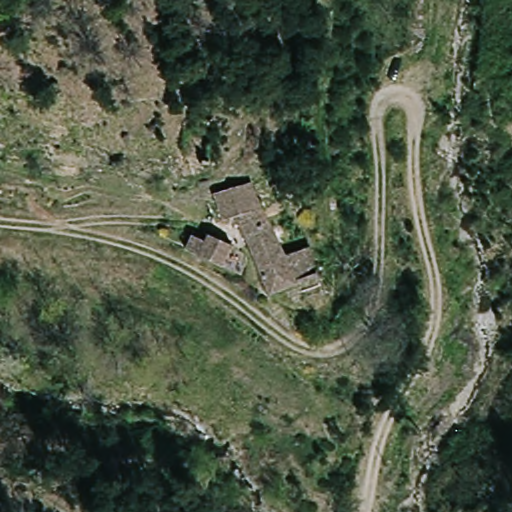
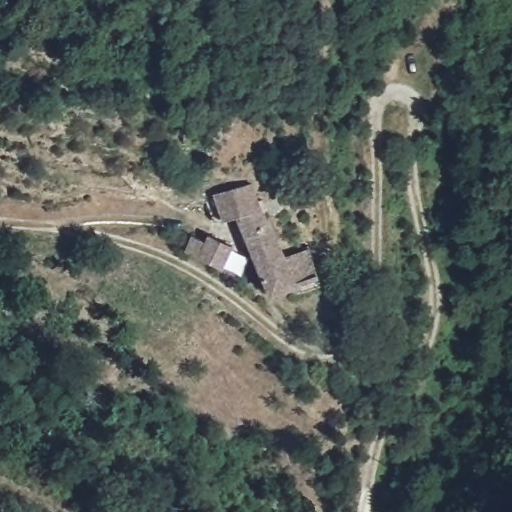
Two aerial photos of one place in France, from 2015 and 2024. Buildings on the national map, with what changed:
unchanged [(281,262),(308,254),(319,280),(272,302),(237,219),(223,222),(216,195),(251,185),(281,262)]
unchanged [(190,234),(200,237),(203,231),(235,245),(225,270),(183,251),(190,234)]

